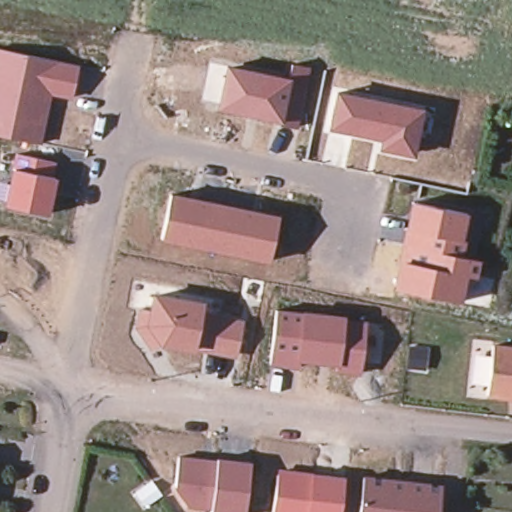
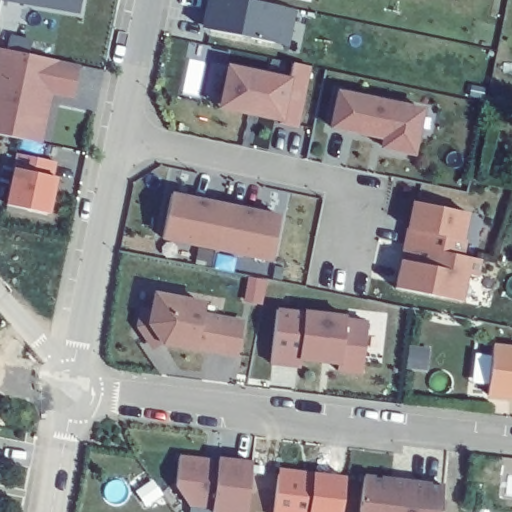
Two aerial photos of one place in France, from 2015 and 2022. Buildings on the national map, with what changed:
new [(1,0),(80,0),(78,15),(1,0)]
new [(288,46),(275,42),(200,27),(206,0),(240,0),(284,8),(296,10),(288,46)]
unchanged [(81,64),(74,102),(52,97),(42,143),(0,135),(0,46),(81,64)]
unchanged [(289,75),(292,62),(310,66),(299,126),(214,110),(224,62),(289,75)]
unchanged [(423,108),(413,156),(376,148),(378,139),(327,128),(334,90),(423,108)]
unchanged [(59,159),(54,176),(59,178),(51,218),(2,205),(11,167),(7,166),(10,150),(59,159)]
unchanged [(282,213),(273,264),(160,240),(171,191),(282,213)]
unchanged [(468,212),(461,239),(466,241),(463,255),(483,260),(478,278),(469,277),(463,303),(392,289),(413,199),(468,212)]
unchanged [(204,301),(203,311),(246,320),(240,354),(196,346),(193,353),(157,347),(149,352),(134,323),(140,306),(146,307),(151,291),(204,301)]
unchanged [(369,317),(363,373),(332,371),(332,366),(299,362),(299,368),(269,366),(274,306),(369,317)]
unchanged [(508,397),(488,394),(494,344),(512,347),(512,395),(509,394),(508,397)]
unchanged [(218,456),(252,460),(245,512),(210,512),(210,510),(188,507),(175,489),(178,453),(217,458),(218,456)]
unchanged [(343,512),(273,512),(278,465),(347,472),(343,512)]
unchanged [(440,512),(360,512),(365,472),(443,481),(440,512)]

